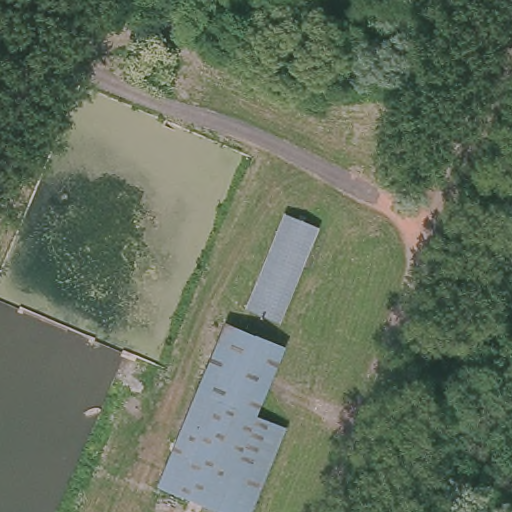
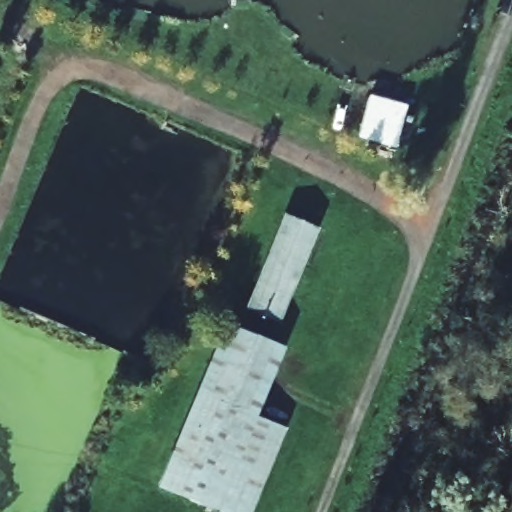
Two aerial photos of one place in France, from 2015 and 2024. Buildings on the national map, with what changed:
new [(395,147),(358,137),(369,94),(407,106),(395,147)]
unchanged [(283,215),(316,229),(280,316),(247,302),(283,215)]
unchanged [(221,324),(285,342),(257,413),(280,424),(247,512),(241,512),(162,480),(221,324)]

